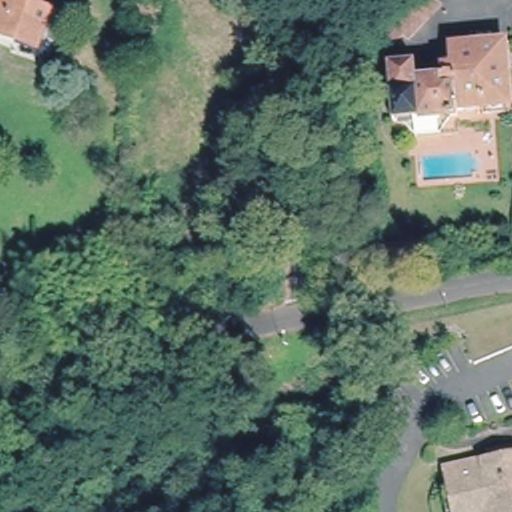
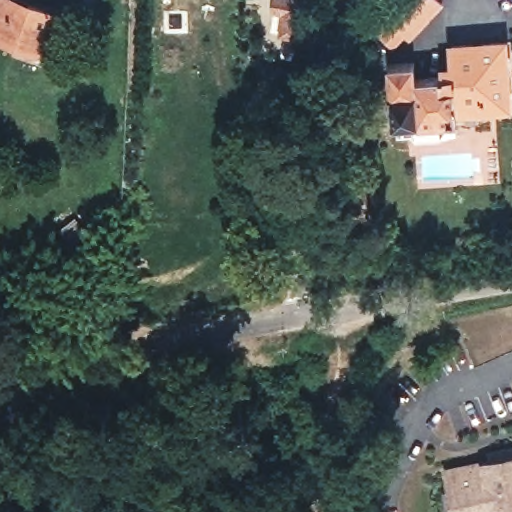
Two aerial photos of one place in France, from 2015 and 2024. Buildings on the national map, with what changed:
unchanged [(0,32),(0,0),(28,0),(48,6),(35,44),(0,32)]
unchanged [(443,0),(407,39),(414,57),(389,59),(380,30),(402,0),(443,0)]
unchanged [(509,100),(458,104),(458,111),(394,116),(389,59),(414,57),(415,72),(453,70),(452,54),(449,54),(448,44),(451,44),(451,41),(504,37),(509,100)]
unchanged [(447,510),(456,509),(447,467),(493,457),(491,450),(512,446),(512,512),(447,512),(447,510)]

